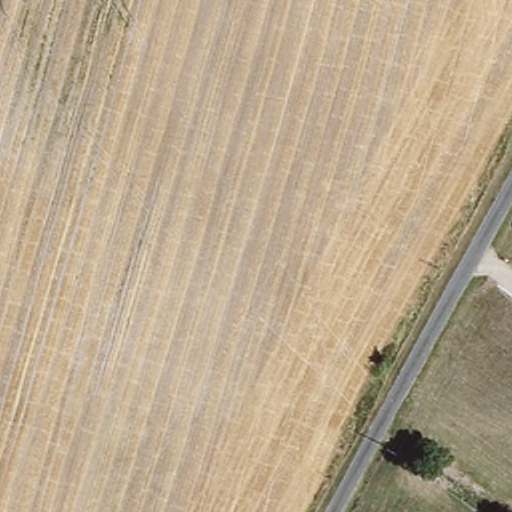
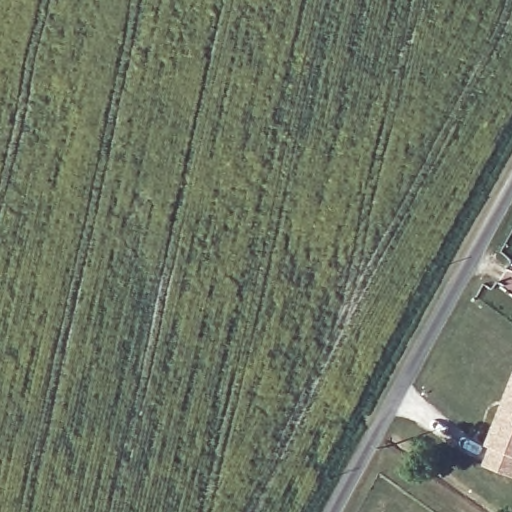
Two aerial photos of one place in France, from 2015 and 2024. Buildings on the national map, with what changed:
new [(512,383),(512,476),(486,466),(494,446),(488,444),(512,383)]

